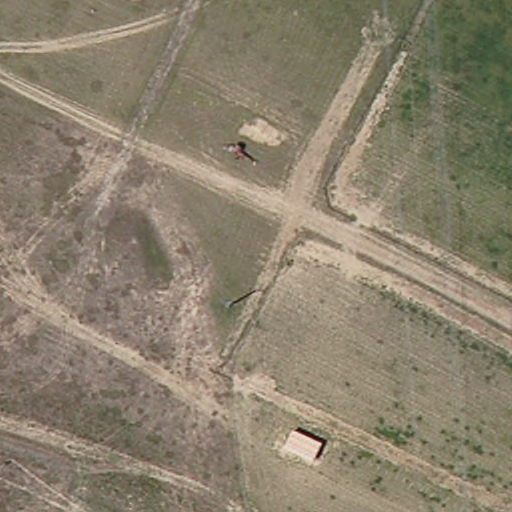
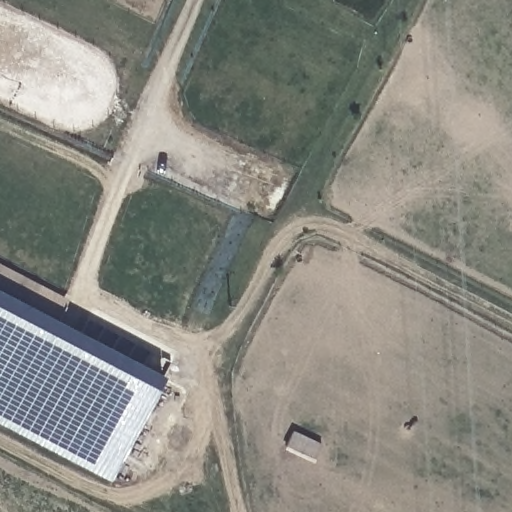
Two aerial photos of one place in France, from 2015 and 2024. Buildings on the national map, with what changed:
new [(70,299),(59,320),(0,291),(0,262),(70,299)]
new [(59,320),(168,377),(114,479),(0,420),(0,291),(59,320)]

